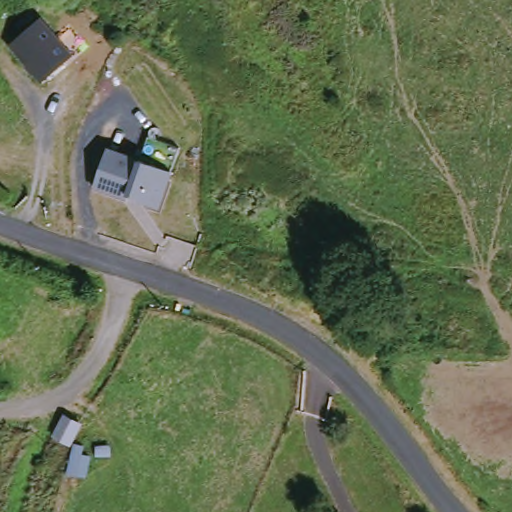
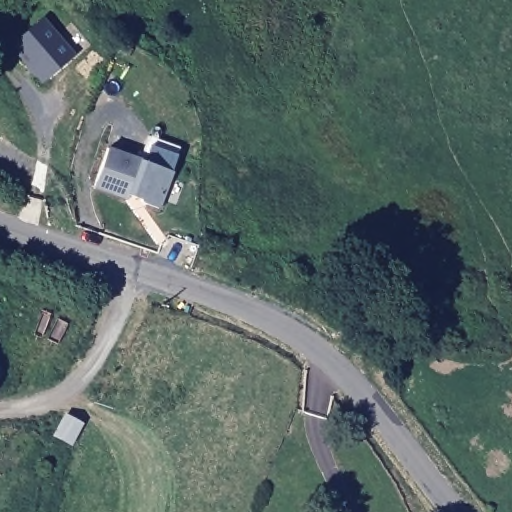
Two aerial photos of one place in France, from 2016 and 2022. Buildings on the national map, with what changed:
unchanged [(41,75),(16,40),(46,17),(72,52),(41,75)]
unchanged [(143,160),(174,173),(162,207),(129,195),(97,186),(110,149),(143,160)]
unchanged [(77,448),(62,440),(72,419),(88,426),(77,448)]

